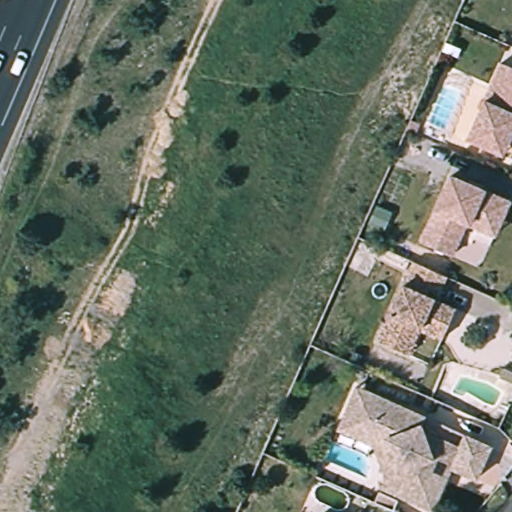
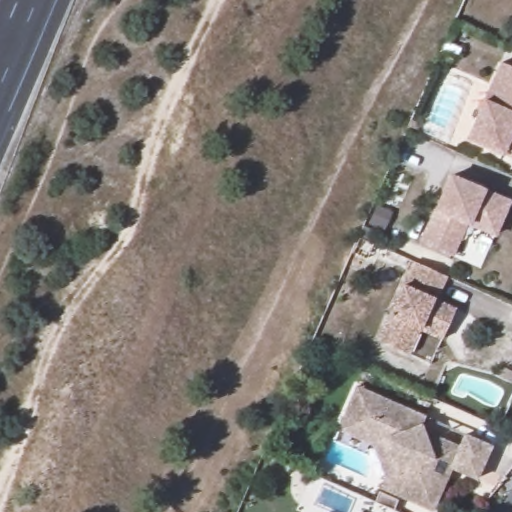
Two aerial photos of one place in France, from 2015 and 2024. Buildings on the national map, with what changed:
unchanged [(475,143),(510,66),(512,68),(512,156),(510,159),(499,153),(475,143)]
unchanged [(427,243),(456,176),(512,201),(512,208),(505,225),(500,235),(485,229),(472,223),(464,240),(457,256),(427,243)]
unchanged [(405,350),(384,341),(419,261),(435,269),(452,276),(445,293),(427,285),(424,292),(462,309),(448,340),(425,329),(414,354),(405,350)]
unchanged [(356,429),(390,443),(403,476),(395,494),(387,491),(391,480),(380,449),(345,433),(363,391),(372,395),(356,429)]
unchanged [(427,431),(429,434),(465,450),(470,438),(496,449),(482,481),(442,464),(437,477),(452,483),(439,512),(435,512),(395,494),(403,476),(390,443),(356,429),(372,395),(431,421),(427,431)]

